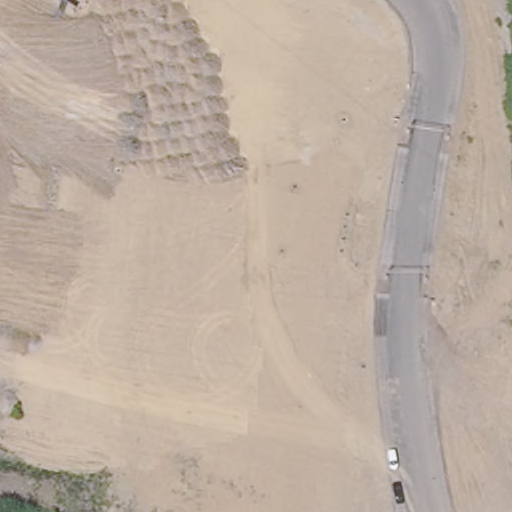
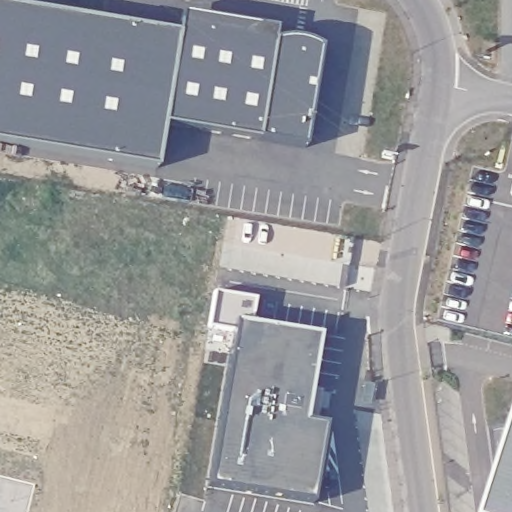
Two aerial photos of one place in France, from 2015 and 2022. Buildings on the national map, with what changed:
new [(176,34),(180,12),(274,29),(272,42),(285,39),(299,40),(312,44),(320,49),(303,147),(163,124),(155,168),(0,142),(0,5),(176,34)]
new [(325,339),(310,427),(332,432),(315,510),(218,493),(245,327),(325,339)]
new [(512,429),(512,428),(512,512),(485,512),(498,472),(512,429)]

